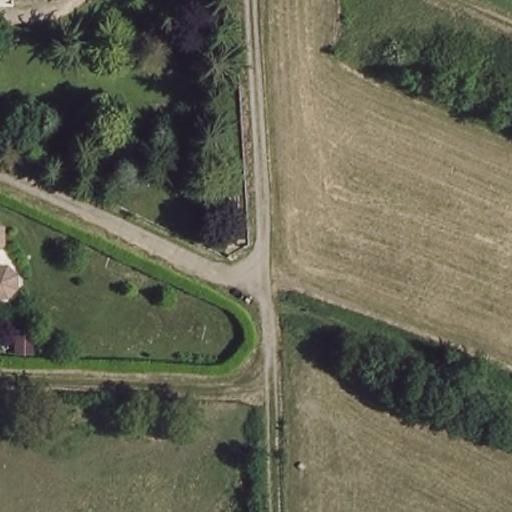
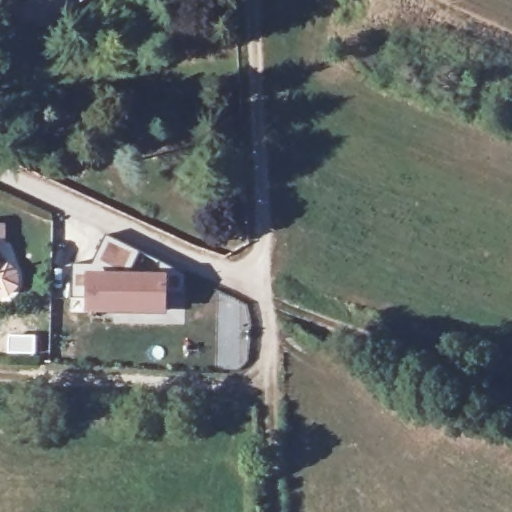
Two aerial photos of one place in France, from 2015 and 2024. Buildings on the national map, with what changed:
new [(183,296),(164,296),(165,316),(83,314),(83,298),(69,299),(68,266),(91,267),(106,237),(138,252),(128,275),(158,276),(159,263),(184,275),(183,296)]
unchanged [(10,268),(13,275),(13,282),(13,284),(5,291),(0,291),(0,264),(4,263),(10,268)]

